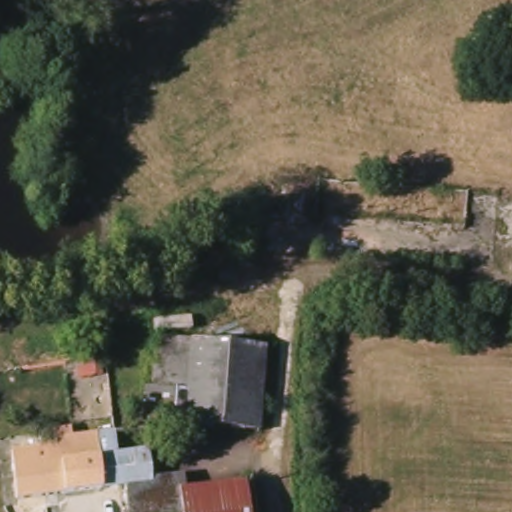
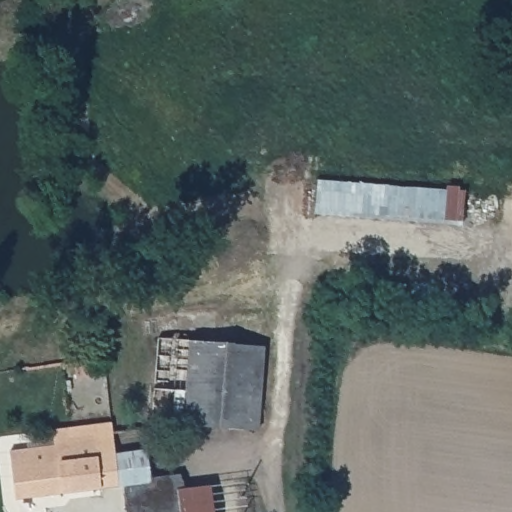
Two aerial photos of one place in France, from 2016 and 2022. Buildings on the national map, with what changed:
new [(317,178),(465,189),(463,226),(314,214),(317,178)]
unchanged [(153,423),(150,340),(194,343),(263,348),(263,356),(259,430),(153,423)]
unchanged [(152,481),(127,486),(117,486),(113,431),(118,430),(145,427),(152,481)]
unchanged [(16,471),(14,454),(60,449),(58,438),(72,436),(92,434),(113,431),(117,486),(20,501),(16,471)]
unchanged [(253,500),(254,512),(130,512),(129,506),(253,500)]

